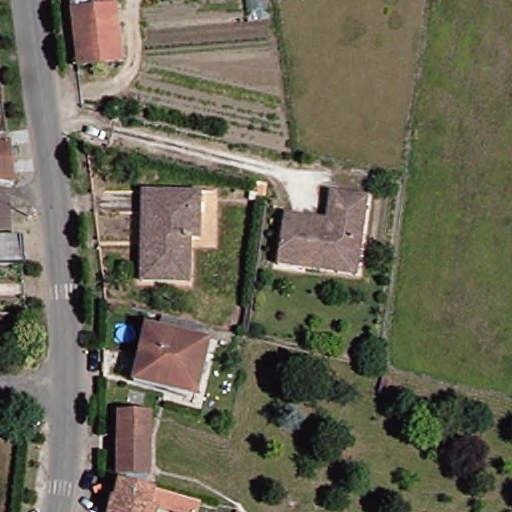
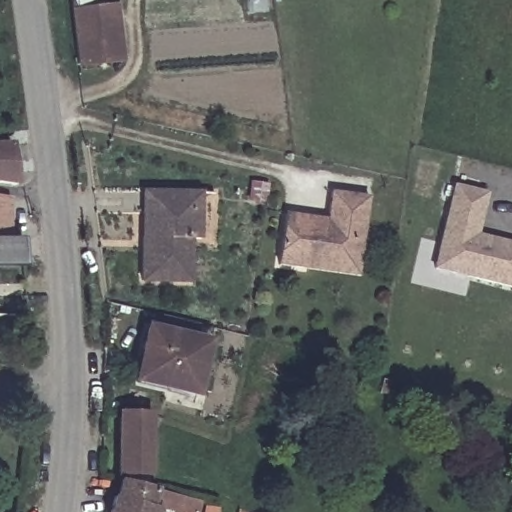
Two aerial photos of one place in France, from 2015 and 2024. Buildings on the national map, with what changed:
unchanged [(110,1),(120,59),(75,66),(64,0),(88,0),(89,2),(110,1)]
unchanged [(5,184),(0,183),(0,144),(3,144),(5,184)]
unchanged [(139,187),(196,189),(195,234),(186,232),(185,277),(137,276),(139,187)]
new [(452,187),(483,195),(473,236),(512,245),(512,289),(432,269),(452,187)]
unchanged [(270,268),(278,215),(319,221),(323,194),(363,201),(351,268),(298,258),(296,272),(270,268)]
unchanged [(2,239),(1,241),(0,241),(0,201),(2,201),(2,239)]
unchanged [(14,265),(0,266),(0,245),(12,244),(14,265)]
unchanged [(136,332),(151,335),(155,319),(188,326),(184,344),(199,347),(190,398),(137,388),(142,356),(132,354),(136,332)]
unchanged [(140,414),(139,475),(109,474),(111,414),(140,414)]
unchanged [(152,490),(149,507),(156,509),(156,512),(108,512),(110,500),(112,500),(116,483),(136,486),(152,490)]

